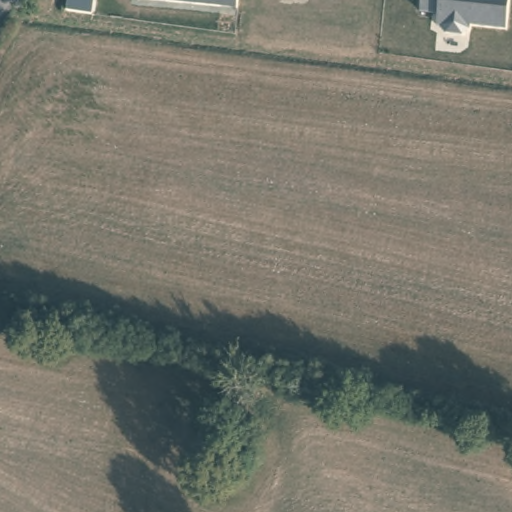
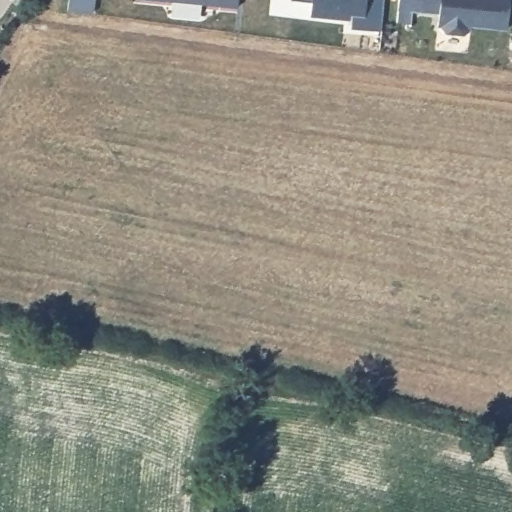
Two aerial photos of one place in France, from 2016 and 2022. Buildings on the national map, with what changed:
unchanged [(93,12),(66,8),(67,0),(95,0),(93,12)]
unchanged [(138,0),(237,0),(236,8),(138,0)]
new [(381,30),(350,27),(350,19),(309,15),(311,1),(302,0),(383,0),(381,30)]
unchanged [(504,28),(472,25),(468,29),(462,33),(444,30),(438,24),(439,12),(410,10),(410,22),(396,21),(399,0),(508,0),(504,28)]

